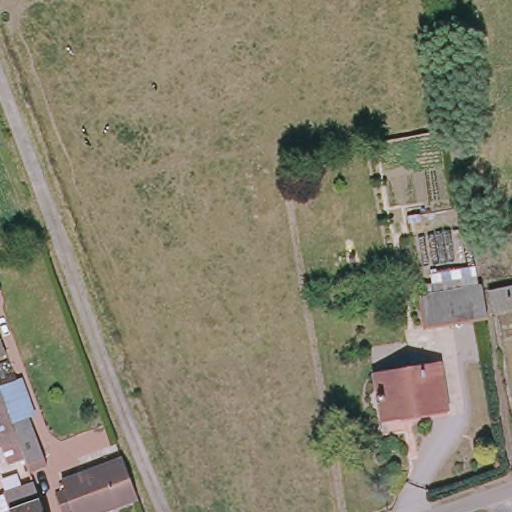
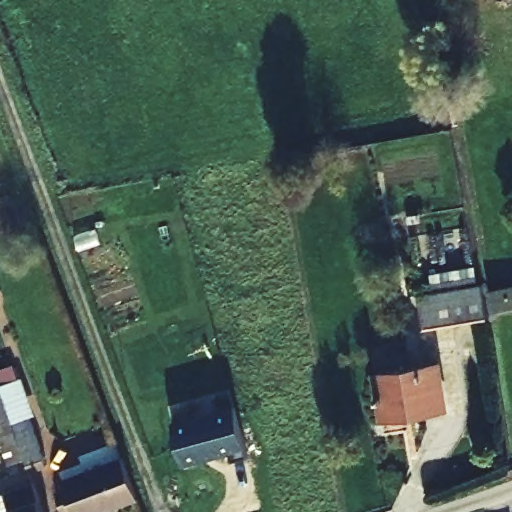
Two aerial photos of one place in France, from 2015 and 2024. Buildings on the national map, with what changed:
unchanged [(512,285),(512,308),(492,312),(488,290),(512,285)]
unchanged [(483,286),(484,290),(490,321),(429,331),(423,296),(483,286)]
unchanged [(435,364),(445,362),(453,411),(388,422),(380,373),(435,364)]
unchanged [(33,429),(45,464),(30,470),(0,388),(0,385),(22,377),(39,425),(33,429)]
unchanged [(9,464),(0,439),(0,392),(24,458),(9,464)]
new [(172,422),(235,405),(248,456),(232,460),(230,451),(183,463),(172,422)]
unchanged [(140,502),(112,512),(66,512),(60,497),(68,493),(61,479),(123,456),(140,502)]
unchanged [(11,510),(40,500),(44,512),(0,512),(0,510),(10,506),(11,510)]

